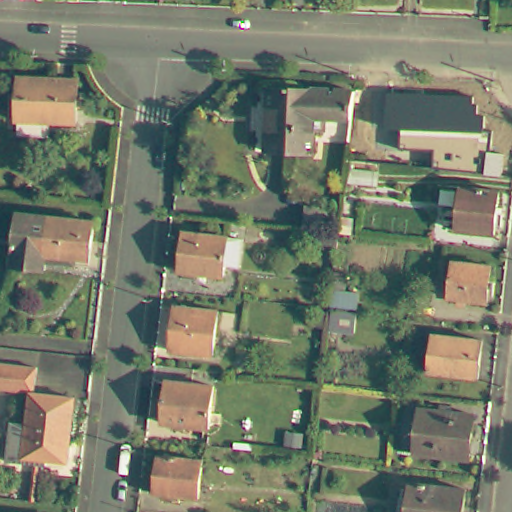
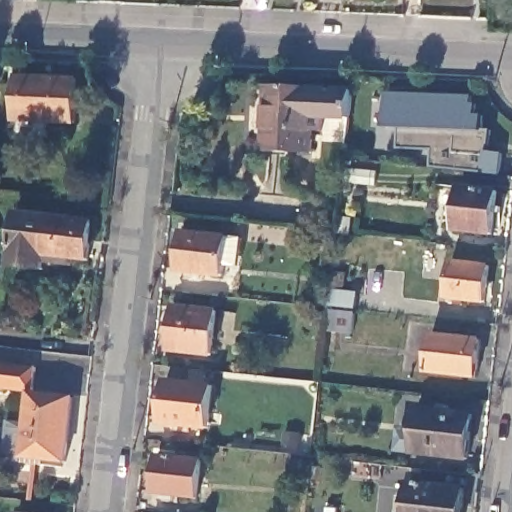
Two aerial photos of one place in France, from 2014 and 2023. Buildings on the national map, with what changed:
unchanged [(74,81),(72,124),(15,122),(16,78),(74,81)]
unchanged [(351,88),(348,120),(319,119),(319,130),(308,130),(308,139),(308,151),(262,146),(264,84),(351,88)]
unchanged [(415,96),(415,93),(477,96),(476,118),(467,118),(467,126),(466,136),(393,131),(396,95),(415,96)]
unchanged [(351,133),(365,134),(363,152),(349,151),(350,139),(351,133)]
unchanged [(380,158),(379,170),(347,167),(349,154),(380,158)]
unchanged [(496,191),(493,214),(493,217),(492,227),(491,235),(453,231),(459,187),(496,191)]
unchanged [(87,267),(43,262),(42,269),(11,266),(15,212),(47,215),(44,255),(88,260),(87,267)]
unchanged [(92,220),(88,260),(44,255),(47,215),(92,220)]
unchanged [(198,274),(191,273),(189,273),(187,273),(172,271),(176,231),(221,236),(221,237),(236,239),(233,267),(219,265),(217,276),(198,274)]
unchanged [(488,266),(485,288),(485,291),(484,293),(484,298),(483,302),(462,300),(455,299),(445,297),(449,262),(488,266)]
unchanged [(173,306),(214,311),(210,355),(168,351),(171,324),(173,306)]
unchanged [(358,309),(356,328),(331,325),(333,306),(358,309)]
unchanged [(480,340),(475,377),(426,372),(430,335),(480,340)]
unchanged [(25,393),(8,391),(0,391),(0,366),(11,367),(28,368),(25,393)]
unchanged [(211,386),(206,428),(188,426),(178,425),(173,425),(170,425),(160,424),(164,381),(211,386)]
unchanged [(71,400),(65,464),(23,460),(29,395),(71,400)]
unchanged [(435,411),(444,412),(447,413),(470,415),(465,459),(412,453),(416,409),(435,411)]
unchanged [(199,456),(195,495),(165,492),(161,492),(158,491),(151,491),(155,452),(199,456)]
unchanged [(406,494),(407,492),(407,489),(408,483),(462,490),(460,512),(405,512),(406,497),(406,494)]
unchanged [(26,512),(17,512),(17,511),(26,512)]

